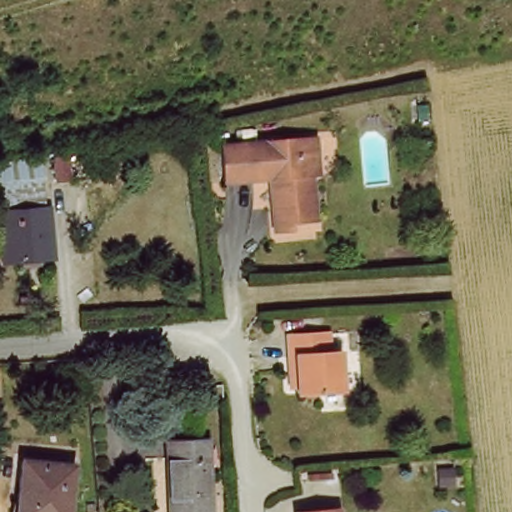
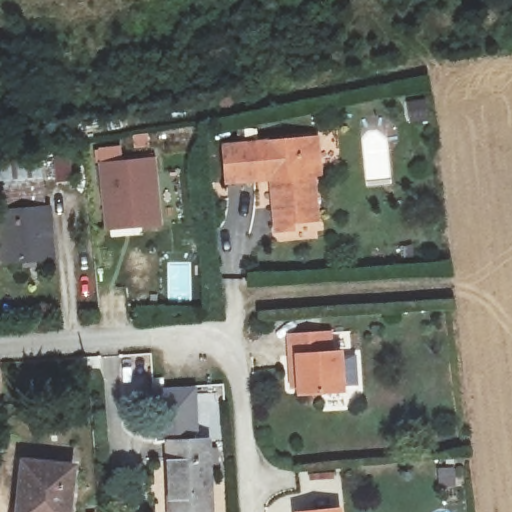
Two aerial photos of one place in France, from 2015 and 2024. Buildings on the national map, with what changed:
unchanged [(293,140),(295,154),(318,151),(321,174),(315,175),(320,219),(301,221),(300,207),(295,208),(297,225),(282,227),(277,185),(287,184),(286,179),(232,185),(227,149),(293,140)]
new [(151,161),(158,225),(106,231),(98,167),(151,161)]
unchanged [(5,215),(0,216),(0,183),(50,176),(53,204),(63,203),(67,260),(8,266),(5,215)]
unchanged [(293,351),(292,333),(334,330),(335,351),(347,350),(350,385),(306,390),(306,386),(295,388),(293,351)]
unchanged [(210,440),(212,512),(170,512),(169,440),(210,440)]
unchanged [(78,462),(77,512),(23,512),(27,457),(78,462)]

